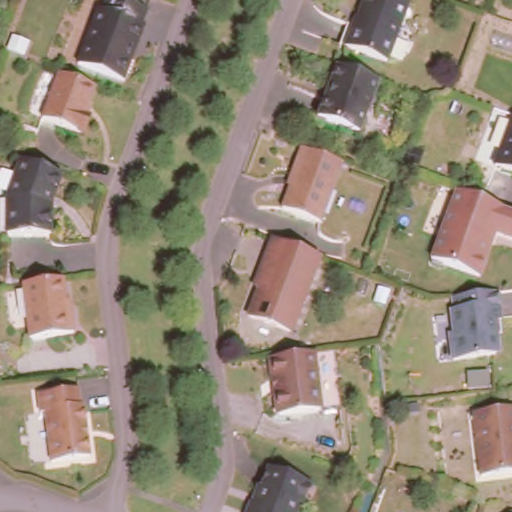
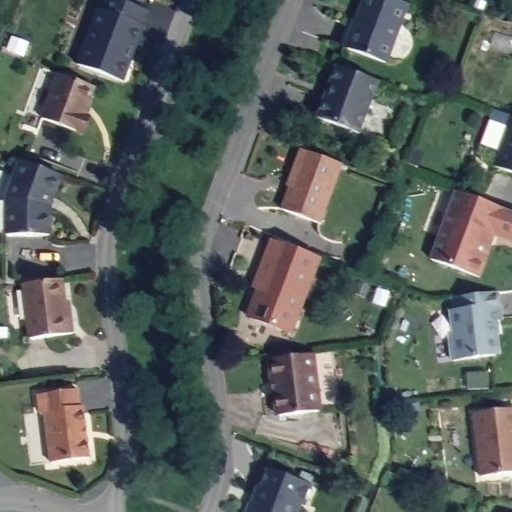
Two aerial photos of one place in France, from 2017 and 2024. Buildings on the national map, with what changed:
unchanged [(119,79),(75,62),(95,7),(98,9),(102,0),(123,0),(142,7),(136,22),(140,24),(131,45),(127,57),(119,79)]
unchanged [(380,59),(337,42),(346,21),(348,21),(356,0),(401,0),(402,1),(380,59)]
unchanged [(382,82),(362,134),(321,118),(330,97),(333,98),(337,87),(333,85),(340,67),(382,82)]
unchanged [(94,82),(83,110),(87,111),(80,128),(41,113),(58,69),(94,82)]
unchanged [(507,112),(512,113),(512,171),(488,162),(507,112)]
unchanged [(341,160),(318,219),(281,205),(292,175),(290,174),(300,145),(341,160)]
unchanged [(60,177),(52,199),(50,197),(47,203),(48,207),(51,207),(54,232),(10,237),(5,199),(20,161),(60,177)]
unchanged [(433,259),(458,191),(512,211),(512,239),(497,233),(493,244),(481,277),(433,259)]
unchanged [(242,313),(252,286),(248,284),(256,262),(266,236),(315,254),(286,329),(242,313)]
unchanged [(62,280),(66,316),(70,315),(73,334),(29,340),(22,285),(62,280)]
unchanged [(495,316),(488,317),(492,347),(488,352),(446,356),(443,330),(447,329),(445,310),(448,306),(447,293),(491,288),(495,316)]
unchanged [(384,303),(372,299),(375,290),(387,295),(384,303)]
unchanged [(289,355),(309,352),(312,352),(320,409),(316,410),(296,412),(258,417),(254,415),(251,394),(255,391),(254,382),(250,382),(247,360),(289,355)]
unchanged [(75,403),(77,402),(83,455),(45,458),(40,408),(35,409),(32,391),(72,386),(75,403)]
unchanged [(467,415),(510,409),(512,422),(512,474),(475,478),(467,415)]
unchanged [(253,499),(260,483),(261,483),(269,465),(311,482),(303,503),(298,501),(293,512),(246,512),(250,498),(253,499)]

